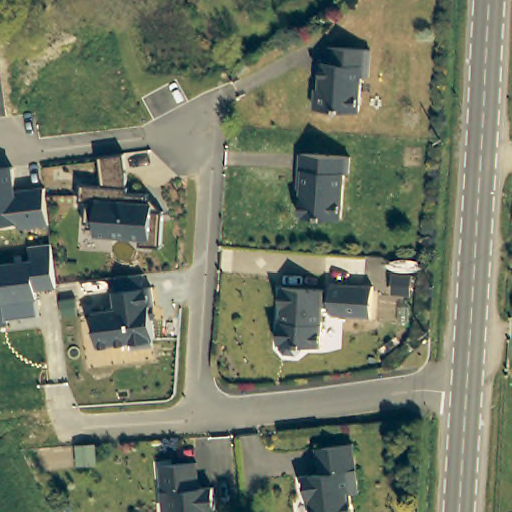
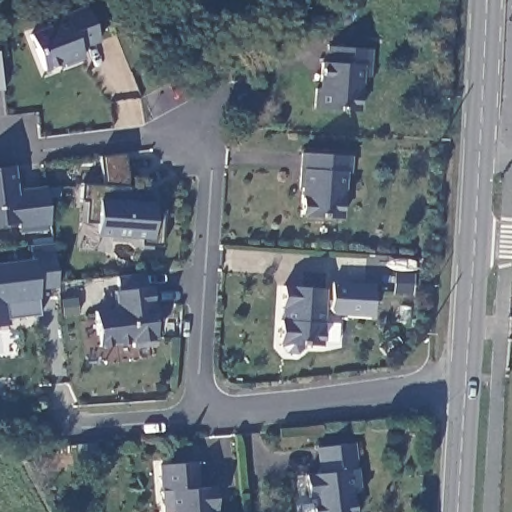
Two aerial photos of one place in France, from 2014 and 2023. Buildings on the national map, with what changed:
new [(86,7),(99,43),(97,45),(79,51),(82,60),(42,74),(29,33),(48,27),(47,20),(86,7)]
unchanged [(367,52),(365,80),(358,79),(356,114),(311,112),(313,92),(317,92),(318,65),(323,66),(325,49),(367,52)]
unchanged [(162,247),(141,244),(141,239),(93,235),(94,225),(86,223),(88,204),(81,202),(82,185),(103,184),(100,156),(124,154),(128,178),(129,193),(150,195),(151,199),(161,211),(165,211),(162,247)]
unchanged [(347,158),(346,175),(341,175),(338,221),(297,217),(299,190),(296,190),(298,155),(347,158)]
unchanged [(51,225),(20,229),(19,224),(0,226),(0,166),(14,165),(17,190),(47,187),(51,225)]
unchanged [(59,287),(38,288),(41,317),(9,321),(10,327),(0,328),(0,262),(31,259),(29,245),(53,242),(59,287)]
unchanged [(157,319),(153,320),(157,345),(135,348),(135,343),(95,347),(90,312),(116,308),(113,290),(130,287),(129,275),(145,274),(148,286),(154,286),(157,319)]
unchanged [(281,303),(279,303),(280,283),(322,286),(322,291),(328,292),(329,280),(371,283),(369,314),(330,311),(327,306),(327,303),(321,302),(318,343),(299,342),(299,346),(294,351),(283,350),(278,345),(278,341),(276,340),(277,317),(280,317),(281,303)]
unchanged [(356,512),(316,512),(313,494),(310,495),(308,472),(322,471),(319,445),(323,445),(355,440),(361,489),(353,490),(356,512)]
unchanged [(209,507),(210,512),(170,512),(169,511),(161,512),(158,462),(189,460),(193,460),(195,486),(210,485),(212,507),(209,507)]

